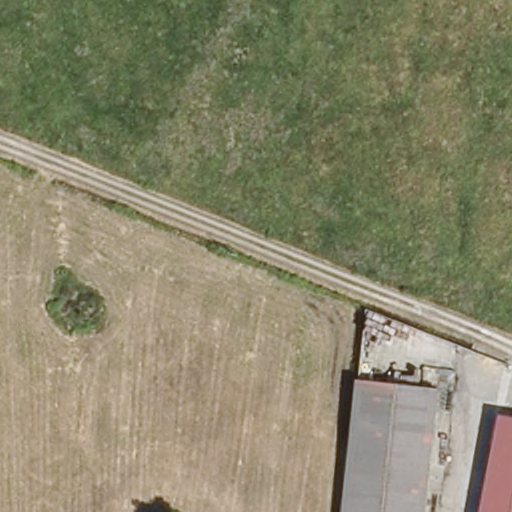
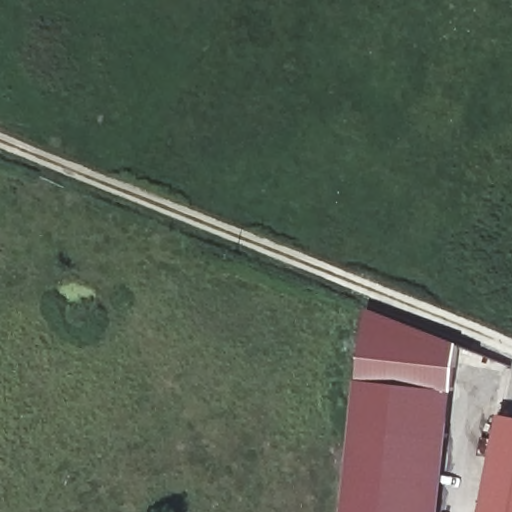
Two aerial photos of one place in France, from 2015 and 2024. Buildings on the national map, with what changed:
new [(361,381),(366,308),(458,343),(453,390),(442,389),(361,381)]
unchanged [(428,512),(346,512),(361,381),(442,389),(428,512)]
unchanged [(476,512),(496,413),(512,417),(512,512),(476,512)]

